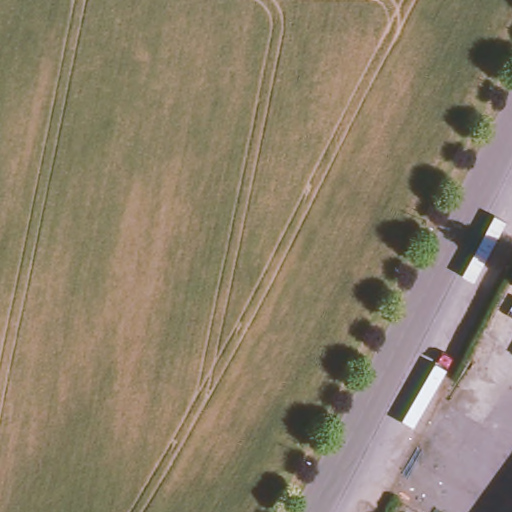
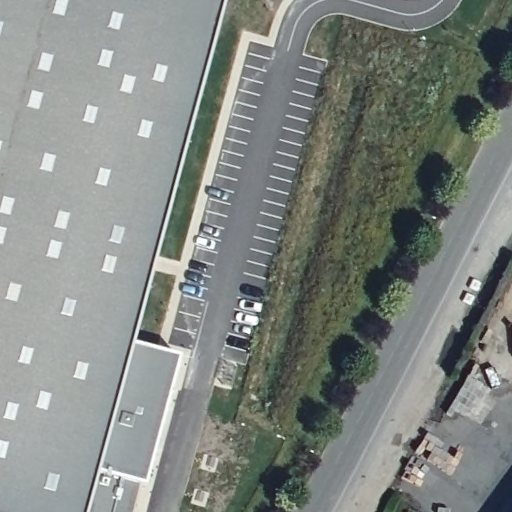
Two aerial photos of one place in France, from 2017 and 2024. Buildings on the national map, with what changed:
new [(84,512),(0,512),(0,0),(221,0),(84,512)]
new [(177,368),(141,496),(136,495),(131,512),(84,512),(126,356),(177,368)]

